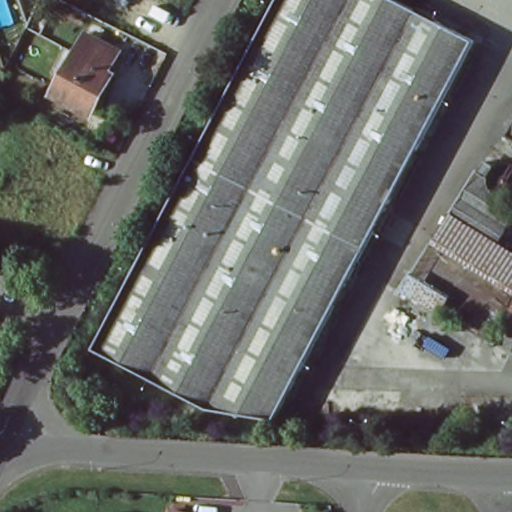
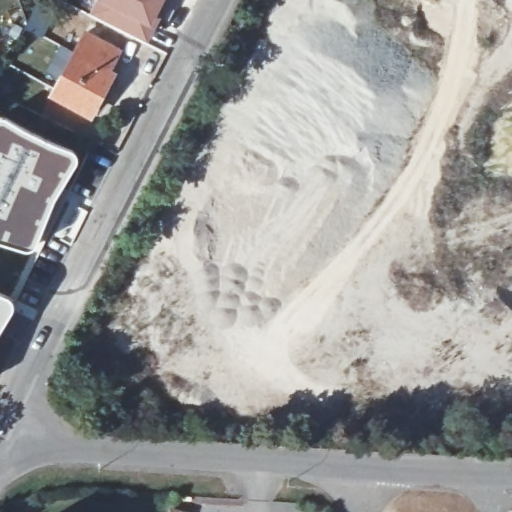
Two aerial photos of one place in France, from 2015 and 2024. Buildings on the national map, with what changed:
new [(95,0),(166,0),(148,43),(89,13),(95,0)]
demolished [(223,97),(274,0),(379,0),(467,47),(391,190),(223,97)]
new [(37,3),(53,16),(42,38),(24,28),(37,3)]
unchanged [(66,51),(44,39),(56,15),(78,27),(66,51)]
unchanged [(86,116),(48,96),(81,35),(113,52),(104,71),(110,74),(86,116)]
demolished [(223,97),(391,190),(267,424),(203,414),(88,354),(223,97)]
demolished [(507,133),(512,124),(512,140),(505,136),(507,133)]
demolished [(498,244),(512,255),(512,299),(511,299),(486,349),(455,328),(481,282),(429,246),(466,184),(492,200),(512,212),(512,215),(498,244)]
new [(178,512),(167,512),(168,509),(178,512)]

